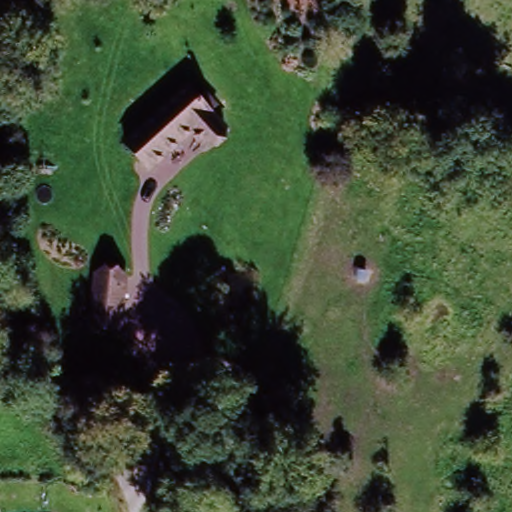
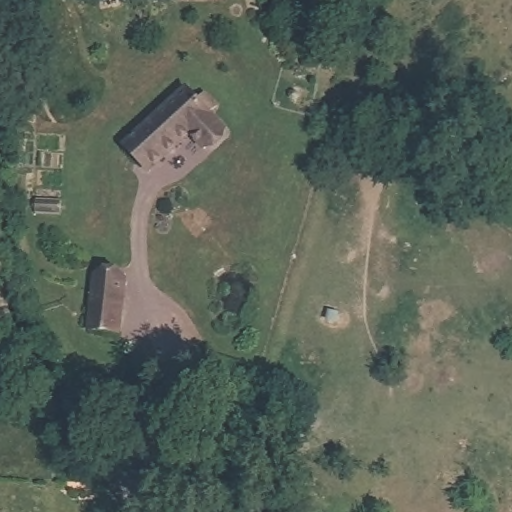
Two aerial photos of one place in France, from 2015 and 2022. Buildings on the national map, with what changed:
unchanged [(185,88),(228,134),(204,156),(189,142),(146,177),(122,148),(185,88)]
unchanged [(125,277),(119,339),(86,338),(92,277),(125,277)]

